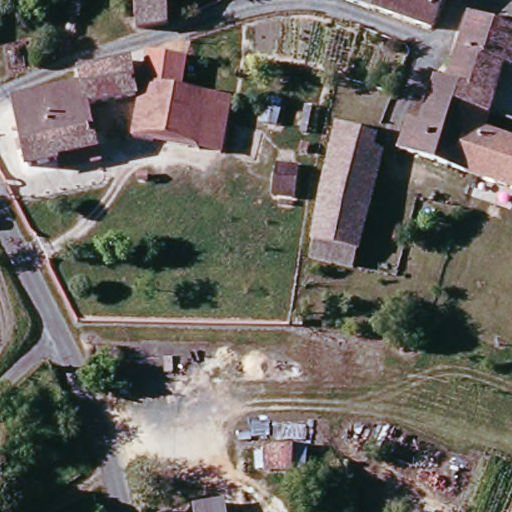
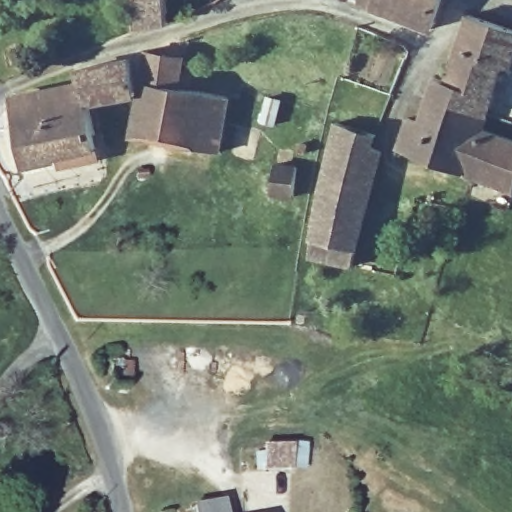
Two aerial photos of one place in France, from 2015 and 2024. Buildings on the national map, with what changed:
unchanged [(168,26),(134,31),(133,1),(128,0),(165,0),(168,26)]
unchanged [(431,29),(374,9),(378,0),(442,0),(431,29)]
unchanged [(437,73),(446,74),(468,13),(512,29),(512,55),(509,62),(512,63),(512,99),(491,92),(484,109),(463,100),(450,131),(419,119),(437,73)]
unchanged [(131,132),(143,79),(150,50),(181,53),(174,84),(205,92),(194,145),(131,132)]
unchanged [(54,158),(23,164),(9,97),(80,81),(79,68),(129,60),(134,89),(86,100),(94,145),(57,152),(54,158)]
unchanged [(270,119),(257,114),(259,105),(264,88),(279,93),(274,107),(270,119)]
unchanged [(205,92),(225,97),(214,149),(194,145),(205,92)]
unchanged [(408,115),(419,119),(450,131),(463,100),(484,109),(480,125),(463,170),(397,144),(408,115)]
unchanged [(299,258),(333,120),(369,138),(371,140),(344,267),(299,258)]
unchanged [(463,170),(480,125),(512,137),(512,188),(467,171),(463,170)]
unchanged [(287,193),(264,188),(270,156),(294,161),(287,193)]
unchanged [(131,363),(129,387),(115,387),(116,362),(131,363)]
unchanged [(284,452),(285,468),(262,469),(261,453),(284,452)]
unchanged [(220,505),(222,512),(191,512),(190,510),(220,505)]

